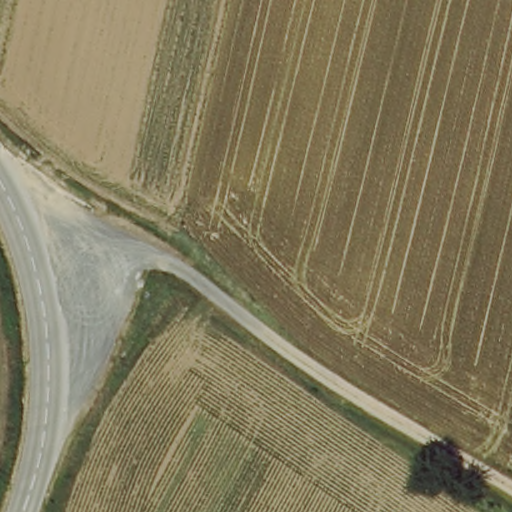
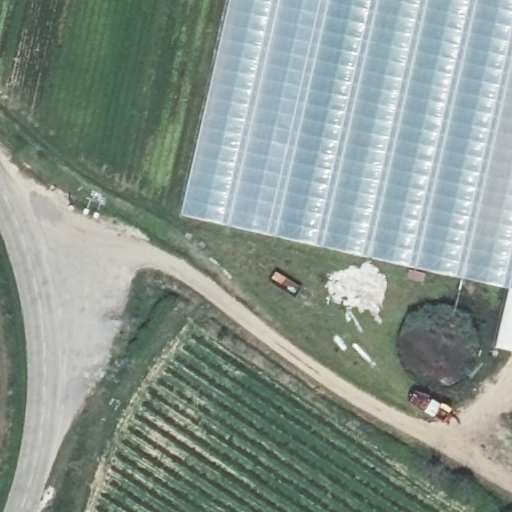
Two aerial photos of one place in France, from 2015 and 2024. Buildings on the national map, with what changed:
new [(505,286),(184,214),(233,0),(512,0),(512,351),(496,348),(505,286)]

